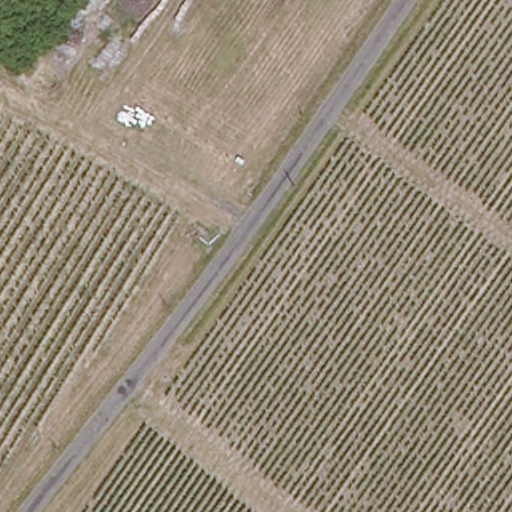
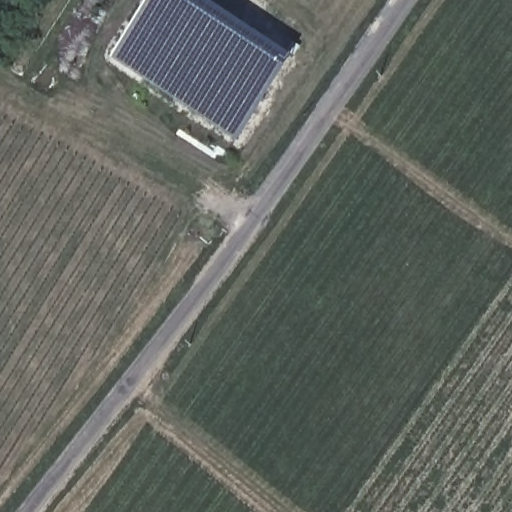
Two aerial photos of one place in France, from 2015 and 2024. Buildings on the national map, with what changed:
new [(150,0),(211,0),(295,55),(237,141),(111,59),(150,0)]

